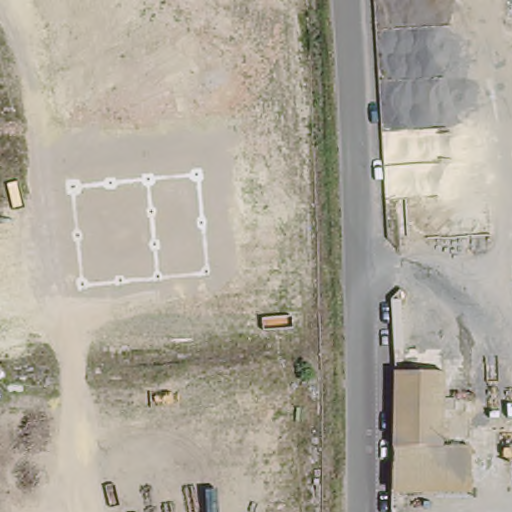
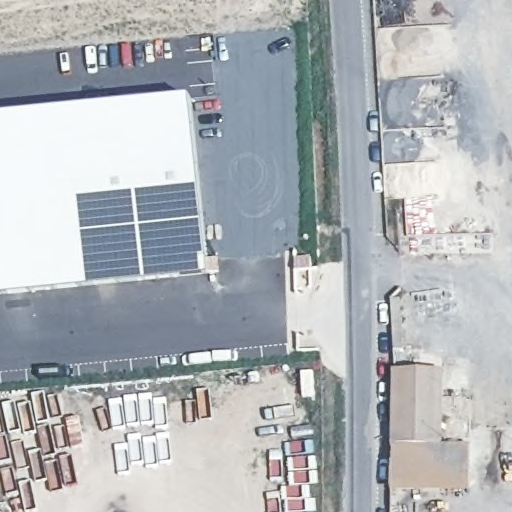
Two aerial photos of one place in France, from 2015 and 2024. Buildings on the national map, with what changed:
new [(72,186),(82,286),(0,298),(0,119),(192,99),(199,173),(72,186)]
unchanged [(199,173),(209,274),(82,286),(72,186),(199,173)]
unchanged [(390,448),(389,374),(436,373),(436,448),(390,448)]
unchanged [(390,448),(436,448),(463,448),(464,488),(389,487),(390,448)]

